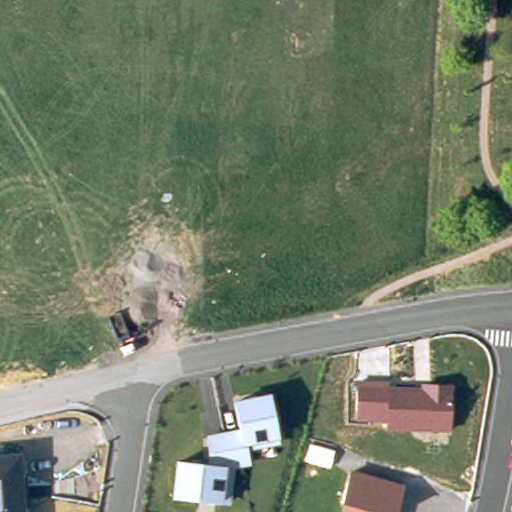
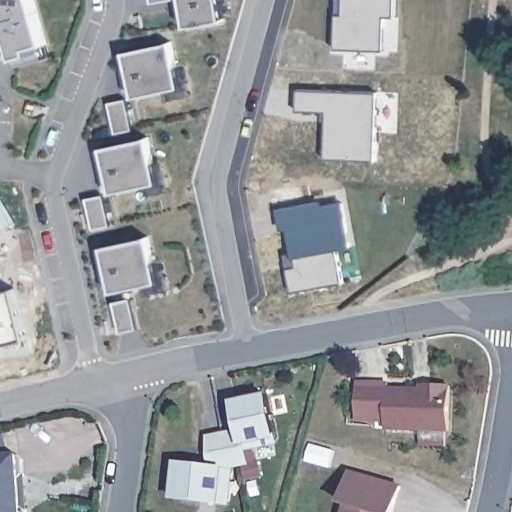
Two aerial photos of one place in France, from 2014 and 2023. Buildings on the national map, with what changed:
new [(4,18),(0,3),(0,0),(34,0),(45,41),(49,56),(19,65),(16,57),(7,30),(0,30),(2,54),(0,54),(0,18),(4,18)]
new [(151,2),(151,0),(167,0),(151,2)]
new [(223,20),(187,26),(182,0),(220,0),(223,20)]
new [(396,17),(386,17),(385,51),(335,49),(337,14),(337,0),(397,0),(396,17)]
new [(171,41),(182,87),(134,97),(124,51),(171,41)]
new [(298,89),(379,92),(376,161),(325,159),(327,112),(297,111),(298,89)]
new [(132,130),(115,133),(109,102),(126,99),(132,130)]
new [(149,137),(159,183),(111,193),(102,147),(149,137)]
new [(110,225),(93,229),(87,199),(104,195),(110,225)]
new [(289,227),(282,229),(279,210),(321,202),(322,207),(344,203),(349,247),(335,249),(342,283),(292,293),(288,269),(285,255),(294,253),(289,227)]
new [(149,236),(159,282),(110,292),(101,247),(149,236)]
new [(130,299),(137,327),(120,331),(114,302),(130,299)]
unchanged [(451,433),(387,435),(387,423),(352,423),(350,381),(387,380),(387,388),(419,388),(420,384),(452,385),(451,433)]
unchanged [(280,444),(249,451),(252,467),(236,469),(232,504),(224,503),(172,500),(176,459),(207,463),(206,438),(227,433),(237,430),(231,402),(270,392),(280,444)]
unchanged [(20,454),(25,459),(25,475),(21,478),(24,505),(30,510),(30,512),(0,512),(0,456),(20,454)]
unchanged [(396,512),(343,512),(345,507),(342,502),(351,471),(403,485),(396,512)]

